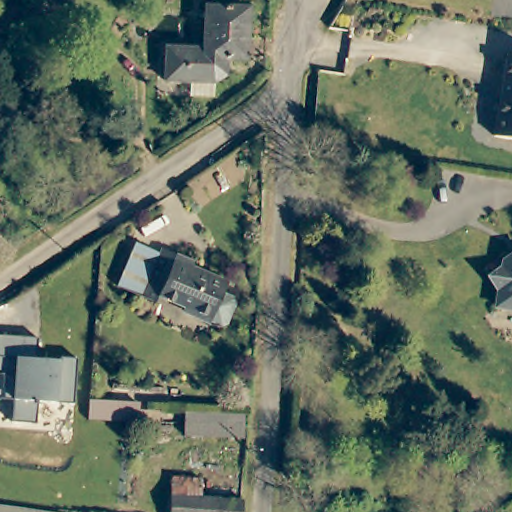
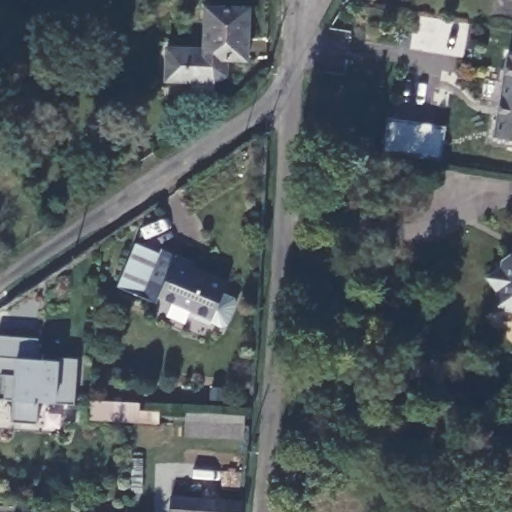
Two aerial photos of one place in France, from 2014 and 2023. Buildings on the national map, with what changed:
unchanged [(189,94),(190,80),(164,79),(166,46),(204,49),(207,6),(249,8),(244,59),(226,59),(224,75),(212,81),(211,95),(189,94)]
unchanged [(505,51),(512,53),(512,139),(487,134),(505,51)]
new [(441,160),(382,152),(388,117),(446,127),(441,160)]
unchanged [(3,164),(0,166),(0,160),(3,164)]
unchanged [(157,294),(154,302),(118,287),(112,284),(120,268),(131,241),(157,252),(159,247),(173,253),(190,260),(188,264),(224,279),(219,290),(230,295),(232,301),(223,322),(218,324),(207,319),(206,321),(186,312),(178,309),(180,305),(157,294)]
unchanged [(484,275),(501,263),(499,259),(510,251),(512,253),(512,307),(492,304),(494,288),(484,275)]
unchanged [(37,340),(35,359),(60,360),(62,359),(76,359),(73,403),(56,403),(36,402),(35,423),(12,421),(13,401),(0,400),(0,337),(37,340)]
unchanged [(90,429),(91,401),(147,405),(144,431),(90,429)]
unchanged [(242,439),(184,436),(184,408),(246,410),(242,439)]
unchanged [(175,496),(177,476),(245,484),(244,512),(174,512),(175,496)]
unchanged [(95,511),(121,512),(94,512),(95,511)]

